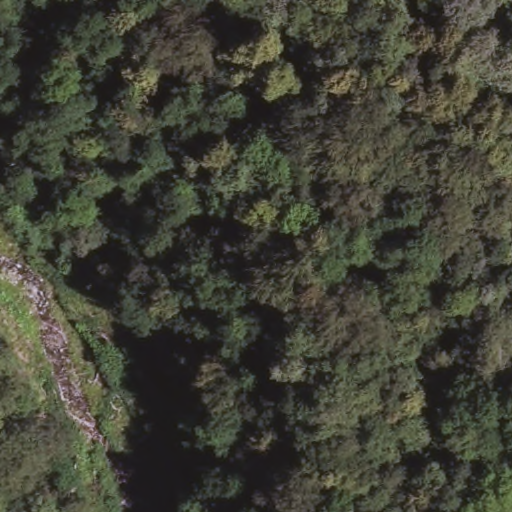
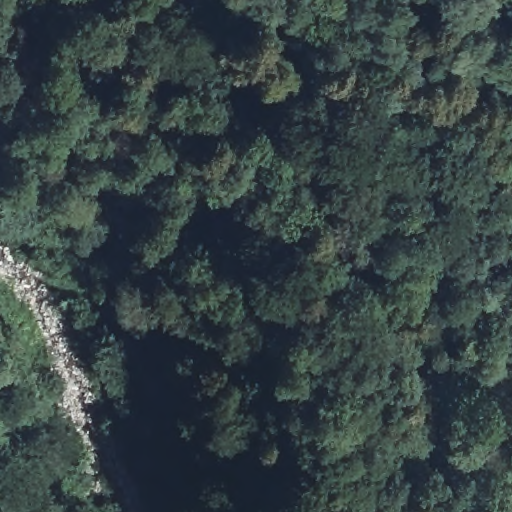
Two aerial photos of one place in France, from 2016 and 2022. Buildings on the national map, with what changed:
[]

